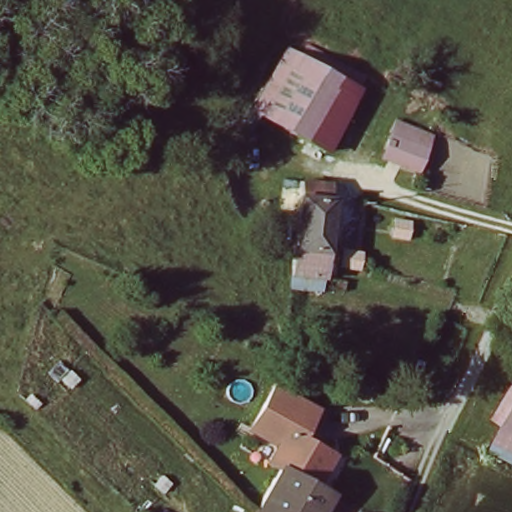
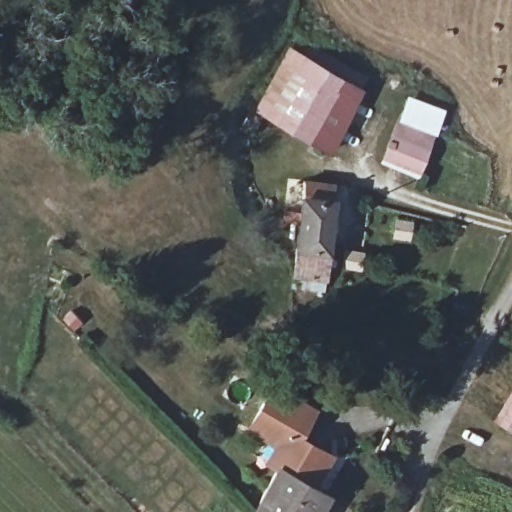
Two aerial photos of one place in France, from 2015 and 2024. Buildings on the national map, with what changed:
unchanged [(296,46),(324,61),(360,84),(338,126),(326,146),(291,126),(257,107),(264,97),(296,46)]
unchanged [(394,119),(432,135),(417,176),(379,159),(394,119)]
unchanged [(311,293),(291,291),(293,282),(296,249),(300,223),(305,186),(334,187),(331,208),(327,244),(321,294),(311,293)]
unchanged [(266,465),(284,431),(249,412),(258,395),(264,383),(306,406),(296,424),(291,434),(328,454),(311,486),(327,495),(317,512),(254,512),(277,471),(266,465)]
unchanged [(512,386),(512,465),(488,453),(501,427),(490,421),(512,386)]
unchanged [(351,510),(350,512),(319,512),(328,496),(351,510)]

